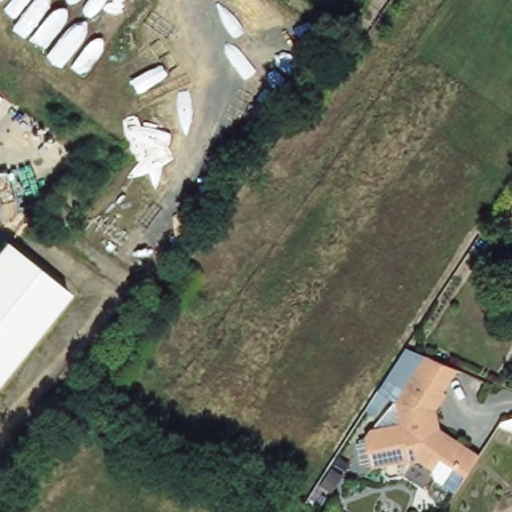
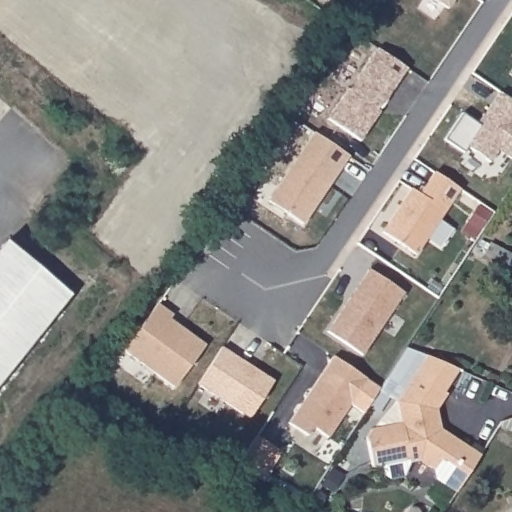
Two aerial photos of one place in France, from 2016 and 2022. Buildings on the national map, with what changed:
new [(348,89),(349,90),(377,49),(407,69),(385,101),(377,109),(380,112),(360,140),(328,119),(348,89)]
new [(481,125),(490,112),(489,107),(499,92),(512,101),(512,157),(511,158),(498,150),(490,162),(468,146),(464,152),(444,139),(462,112),(481,125)]
new [(314,132),(348,155),(302,224),(268,200),(314,132)]
new [(411,188),(419,194),(434,171),(459,189),(415,254),(382,231),(411,188)]
new [(6,241),(71,294),(0,382),(0,249),(6,241)]
unchanged [(505,265),(484,256),(490,241),(511,250),(505,265)]
new [(369,269),(403,292),(361,355),(327,331),(369,269)]
new [(157,303),(172,315),(169,318),(205,345),(173,387),(123,350),(157,303)]
new [(221,347),(272,380),(249,417),(197,384),(221,347)]
unchanged [(481,452),(467,472),(447,459),(445,450),(431,440),(422,445),(420,442),(387,460),(368,436),(373,428),(402,419),(396,398),(427,354),(427,353),(463,369),(462,369),(435,406),(439,417),(441,426),(481,452)]
new [(332,355),(366,378),(355,395),(326,436),(312,426),(306,434),(287,421),(321,371),(332,355)]

